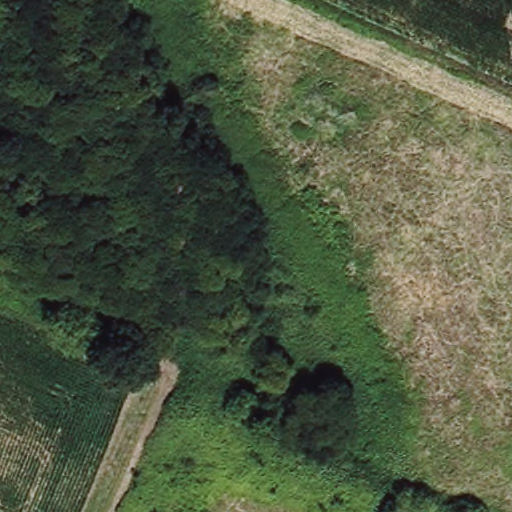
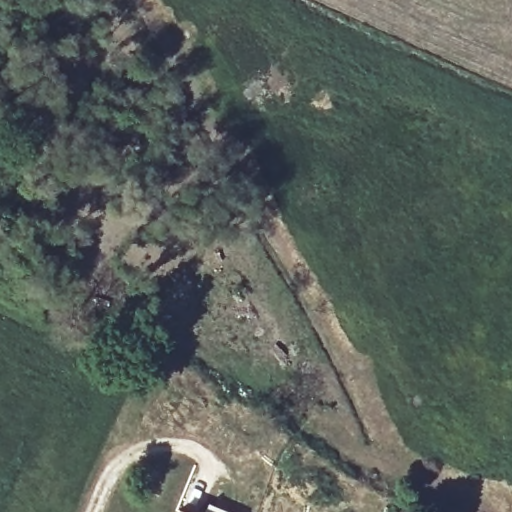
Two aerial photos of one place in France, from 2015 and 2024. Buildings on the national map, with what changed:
new [(227,512),(205,512),(209,503),(227,512)]
new [(177,512),(178,510),(183,512),(177,512)]

